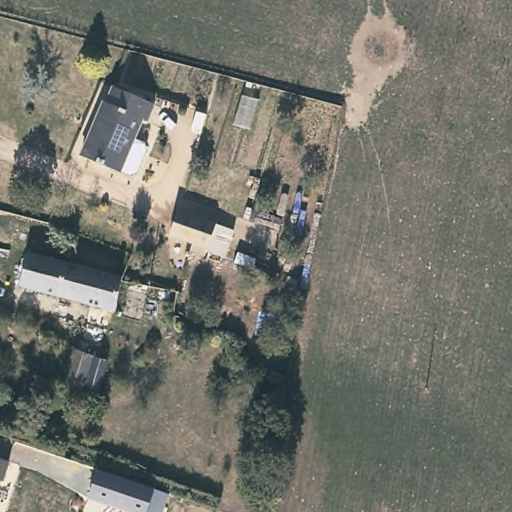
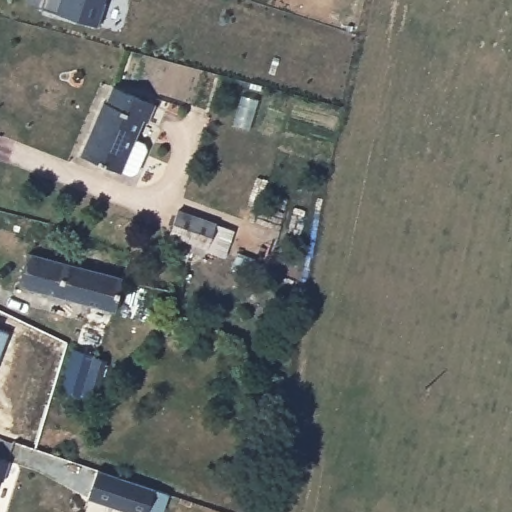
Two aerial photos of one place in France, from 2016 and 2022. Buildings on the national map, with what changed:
new [(58,14),(28,5),(29,0),(105,0),(97,27),(58,14)]
unchanged [(153,106),(145,124),(139,122),(133,139),(142,144),(144,148),(133,175),(128,178),(118,173),(116,175),(78,158),(100,103),(104,105),(111,88),(153,106)]
unchanged [(200,248),(178,240),(185,216),(224,229),(215,253),(212,265),(196,260),(200,248)]
unchanged [(126,283),(124,287),(116,317),(21,289),(30,255),(126,283)]
unchanged [(100,358),(91,399),(69,394),(78,354),(100,358)]
unchanged [(0,476),(0,455),(7,458),(0,476)]
unchanged [(133,512),(90,499),(96,470),(170,496),(164,512),(133,512)]

